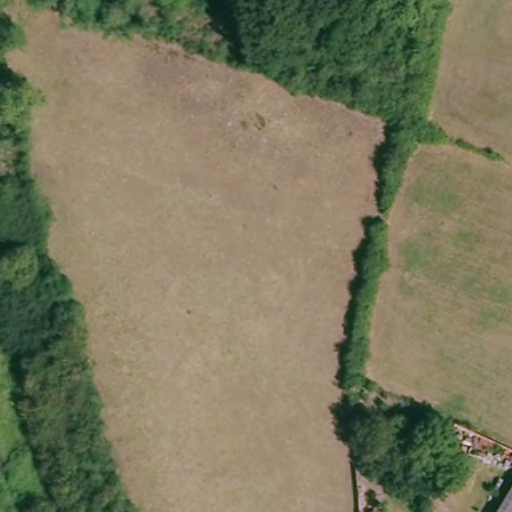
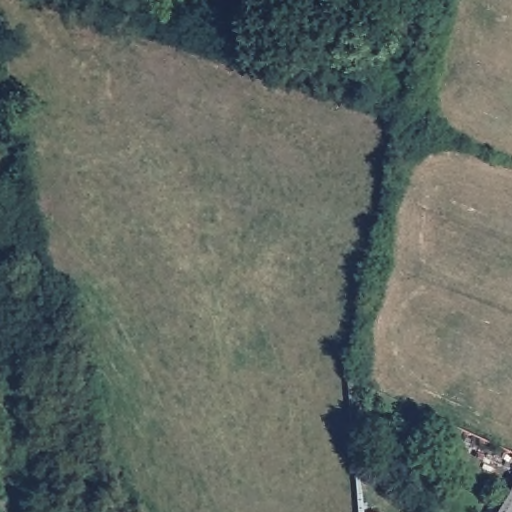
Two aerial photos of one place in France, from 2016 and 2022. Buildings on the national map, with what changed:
unchanged [(512,512),(503,512),(512,495),(512,512)]

